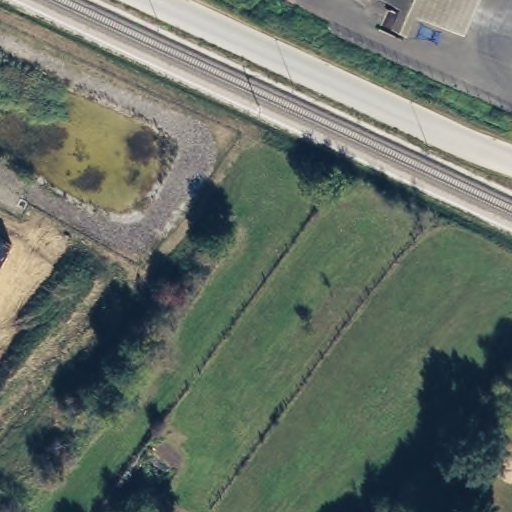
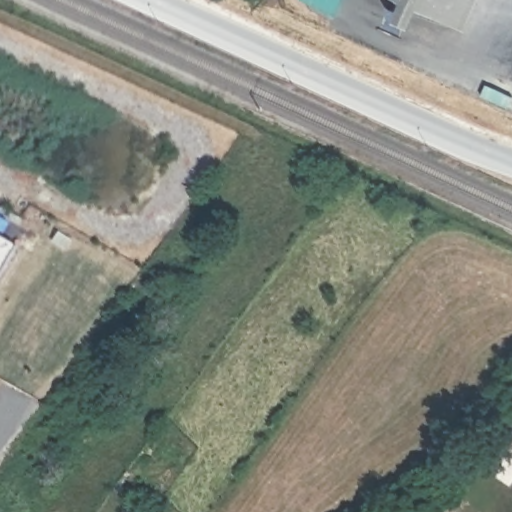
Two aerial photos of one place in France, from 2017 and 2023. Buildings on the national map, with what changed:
unchanged [(404,0),(473,0),(459,28),(404,0)]
unchanged [(0,262),(0,236),(11,241),(0,262)]

